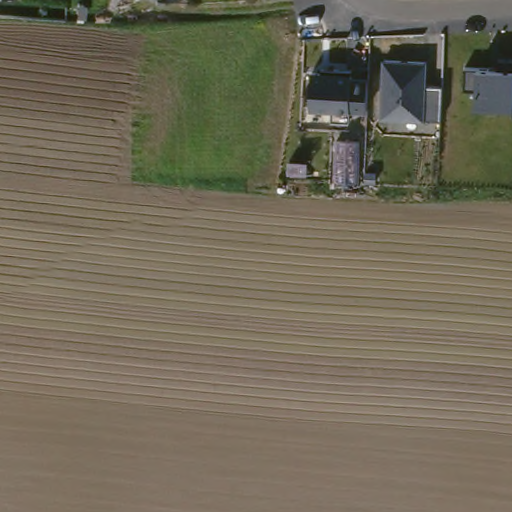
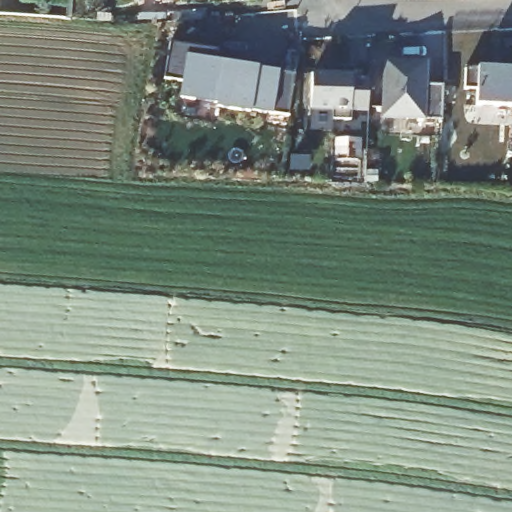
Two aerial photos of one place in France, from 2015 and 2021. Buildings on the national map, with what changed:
new [(272,115),(250,111),(250,113),(216,107),(217,104),(177,98),(180,80),(165,78),(171,44),(217,50),(215,60),(258,67),(258,70),(280,72),(278,75),(295,77),(288,116),(272,115)]
unchanged [(426,63),(425,86),(442,86),(441,120),(382,120),(383,62),(426,63)]
unchanged [(475,104),(476,92),(463,92),(464,70),(480,69),(512,70),(512,106),(475,104)]
unchanged [(350,111),(349,122),(333,121),(333,111),(310,110),(310,74),(355,75),(354,81),(370,81),(370,112),(350,111)]

